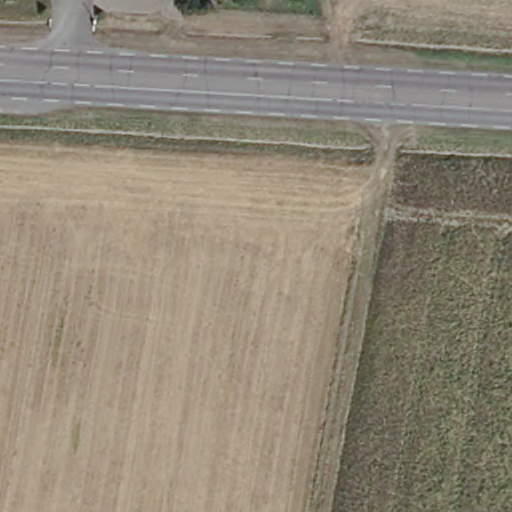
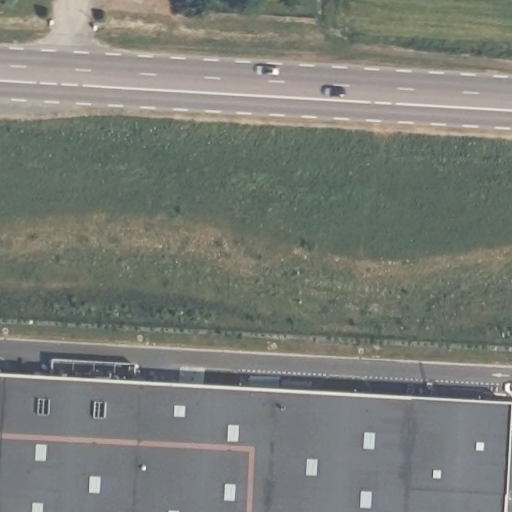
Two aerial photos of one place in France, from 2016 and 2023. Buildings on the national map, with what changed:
new [(500,512),(0,512),(0,379),(507,407),(500,512)]

